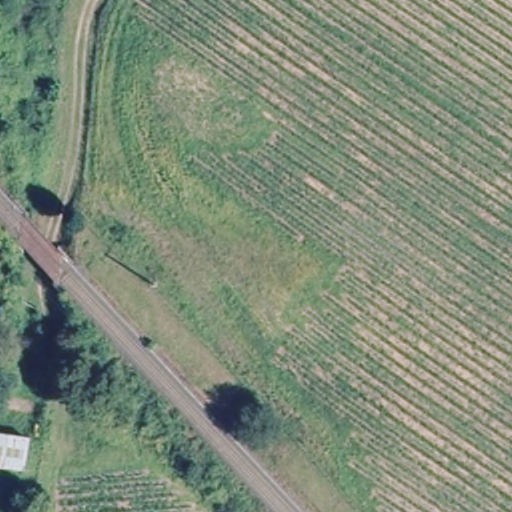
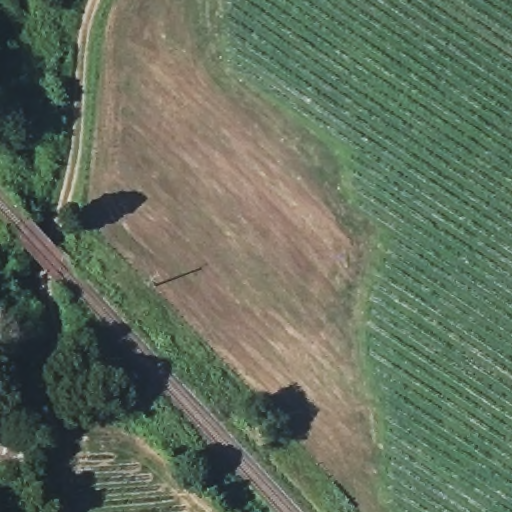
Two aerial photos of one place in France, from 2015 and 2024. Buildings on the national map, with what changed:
unchanged [(5,310),(0,342),(0,309),(5,310)]
unchanged [(29,446),(26,468),(20,467),(0,465),(0,438),(29,441),(29,446)]

